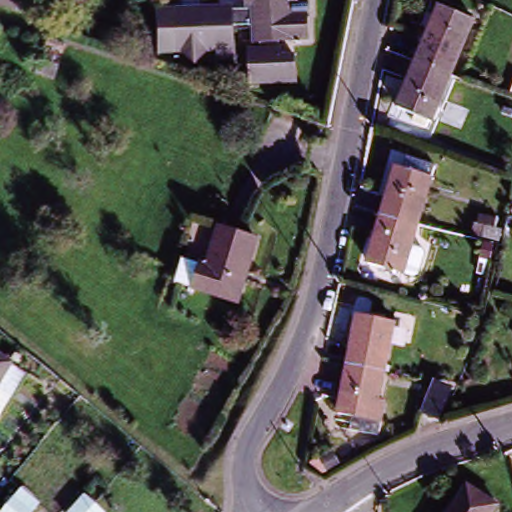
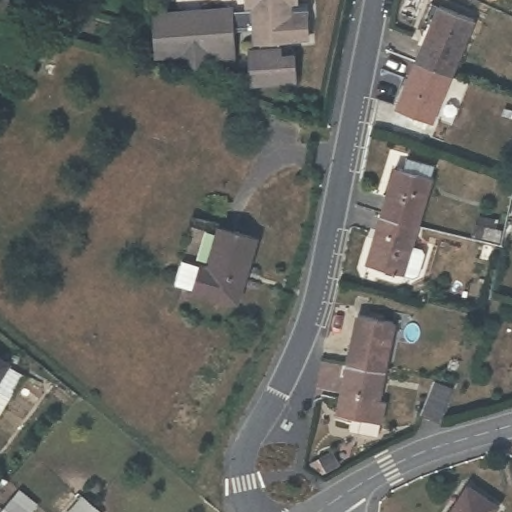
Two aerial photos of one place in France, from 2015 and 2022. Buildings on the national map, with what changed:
unchanged [(32,0),(22,25),(0,16),(0,0),(32,0)]
unchanged [(231,8),(232,12),(256,11),(255,7),(248,8),(248,0),(296,0),(296,5),(291,6),(292,41),(279,42),(279,49),(281,49),(281,57),(294,56),(296,83),(251,86),(248,51),(260,50),(259,44),(256,44),(256,30),(233,31),(234,60),(217,61),(216,53),(208,53),(196,66),(183,55),(156,56),(154,12),(220,9),(231,8)]
unchanged [(437,7),(469,21),(446,76),(413,63),(437,7)]
unchanged [(44,51),(42,50),(45,41),(63,46),(54,81),(36,76),(44,51)]
unchanged [(408,124),(411,116),(394,108),(413,63),(446,76),(426,122),(423,131),(408,124)]
unchanged [(394,171),(398,160),(423,167),(419,179),(422,180),(408,226),(374,216),(388,169),(394,171)]
unchanged [(408,226),(402,246),(415,250),(417,255),(410,277),(406,279),(393,275),(359,264),(374,216),(408,226)]
unchanged [(251,239),(233,298),(189,285),(169,279),(176,257),(197,263),(201,264),(213,227),(251,239)]
unchanged [(354,317),(389,324),(380,373),(344,366),(354,317)]
unchanged [(10,372),(0,388),(0,365),(10,372)]
unchanged [(372,414),(380,415),(376,436),(344,430),(346,417),(334,414),(344,366),(380,373),(372,414)]
unchanged [(439,425),(420,418),(434,384),(453,391),(439,425)]
unchanged [(458,488),(489,507),(486,512),(443,512),(458,488)]
unchanged [(20,493),(38,507),(34,512),(4,512),(20,493)]
unchanged [(83,499),(98,512),(71,512),(83,499)]

